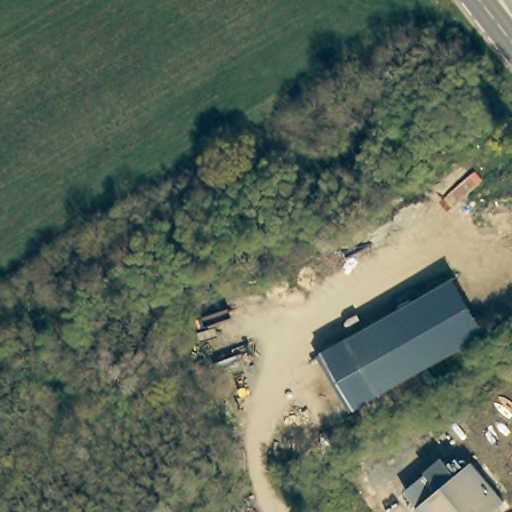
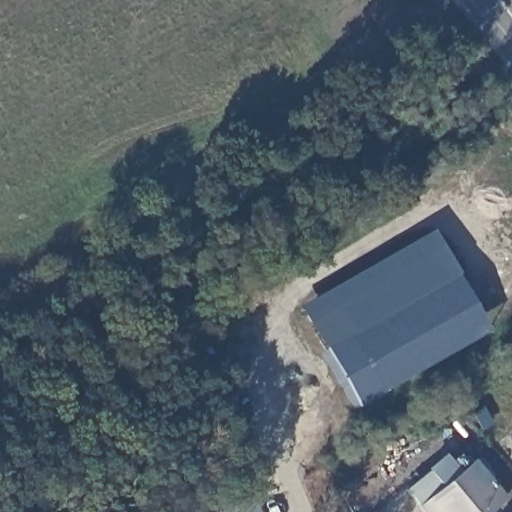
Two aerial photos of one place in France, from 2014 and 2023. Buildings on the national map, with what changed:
new [(320,349),(298,306),(433,231),(457,275),(320,349)]
unchanged [(357,409),(320,349),(457,275),(489,331),(357,409)]
unchanged [(418,503),(440,484),(428,469),(446,454),(459,469),(473,458),(504,496),(485,512),(425,512),(418,503)]

